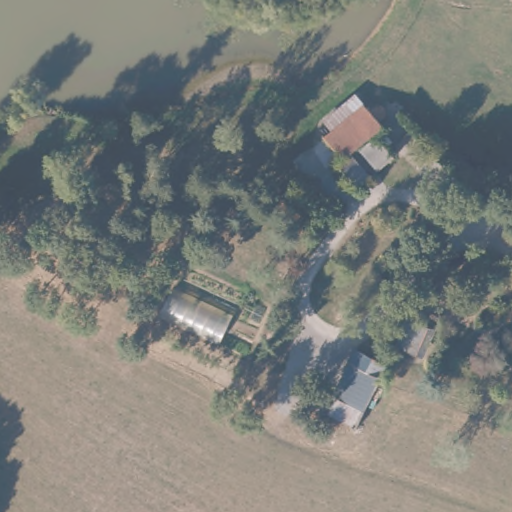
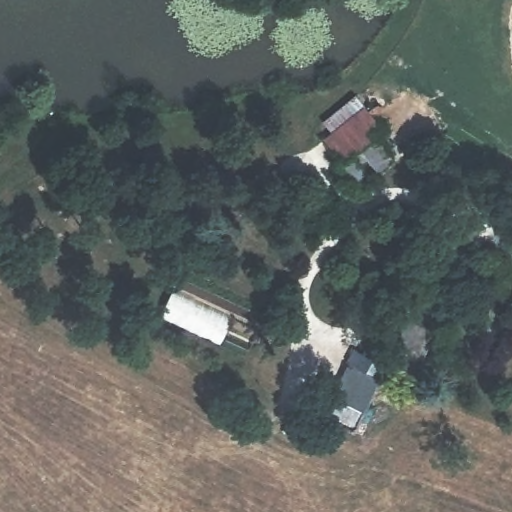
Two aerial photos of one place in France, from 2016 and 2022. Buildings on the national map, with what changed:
unchanged [(372,101),(385,97),(394,102),(394,111),(384,124),(351,152),(374,177),(361,188),(337,162),(343,156),(332,144),(372,101)]
unchanged [(477,170),(464,181),(447,160),(459,150),(477,170)]
unchanged [(430,332),(420,357),(399,348),(411,323),(430,332)]
unchanged [(378,359),(393,366),(361,432),(326,417),(359,351),(378,359)]

